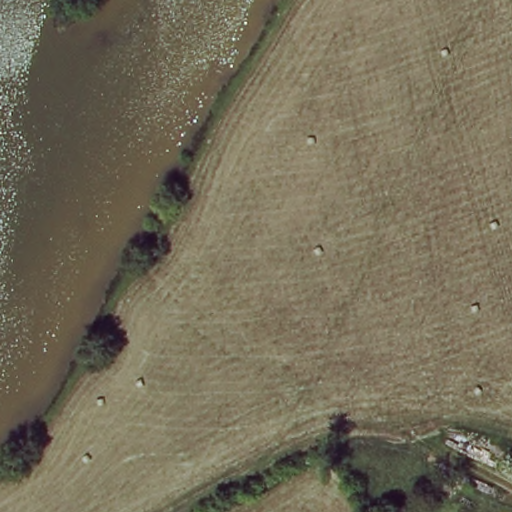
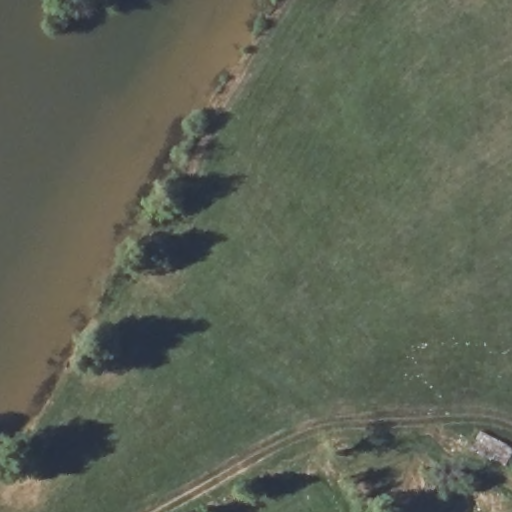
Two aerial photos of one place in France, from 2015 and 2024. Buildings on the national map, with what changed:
[]

